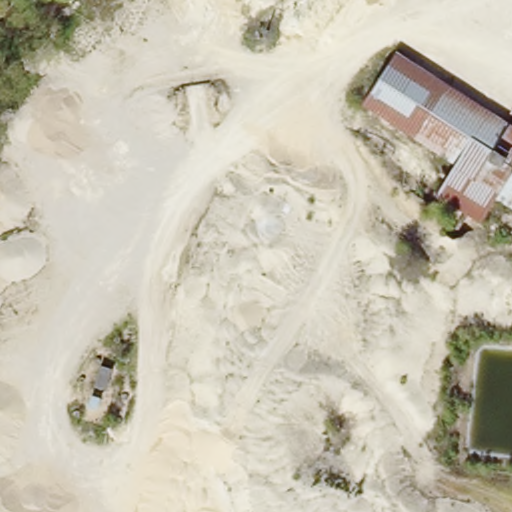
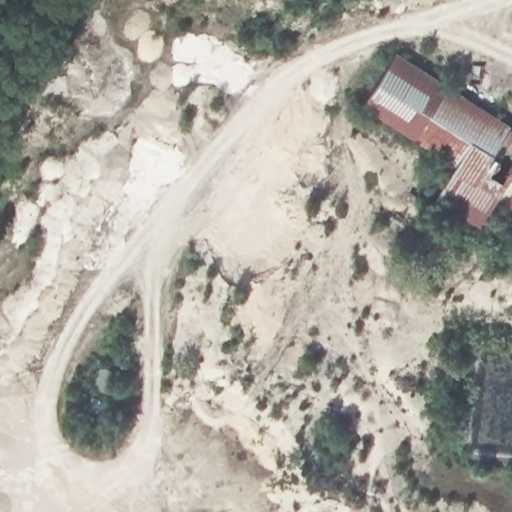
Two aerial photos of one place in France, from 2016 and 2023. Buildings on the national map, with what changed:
unchanged [(500,184),(479,222),(437,194),(453,161),(361,99),(397,47),(512,121),(512,193),(500,184)]

